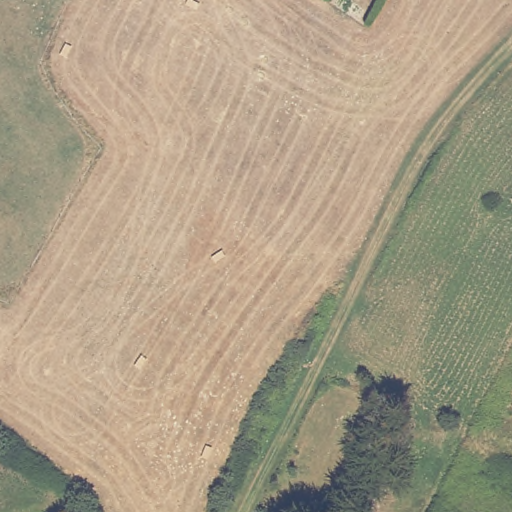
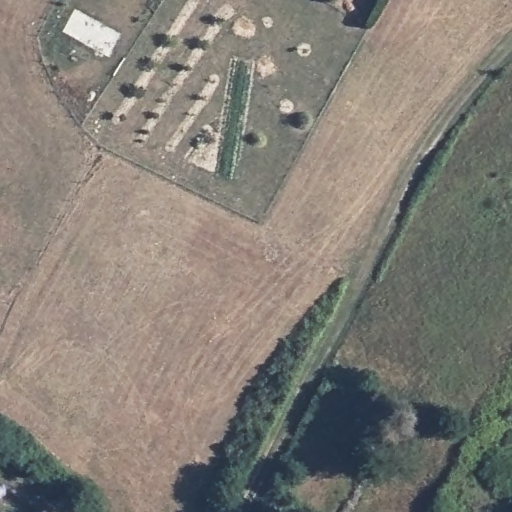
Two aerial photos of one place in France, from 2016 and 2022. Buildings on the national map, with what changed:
unchanged [(402,443),(390,437),(399,415),(414,421),(402,443)]

